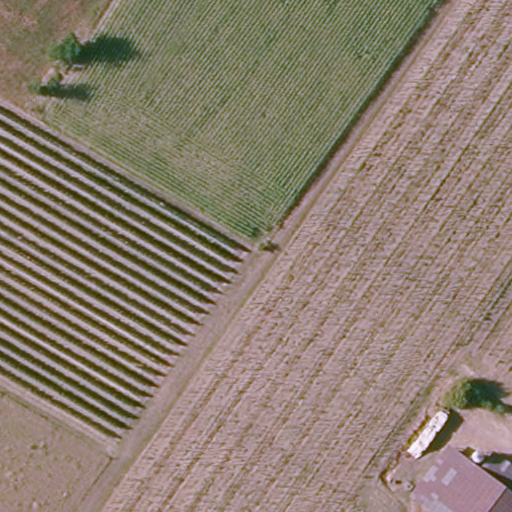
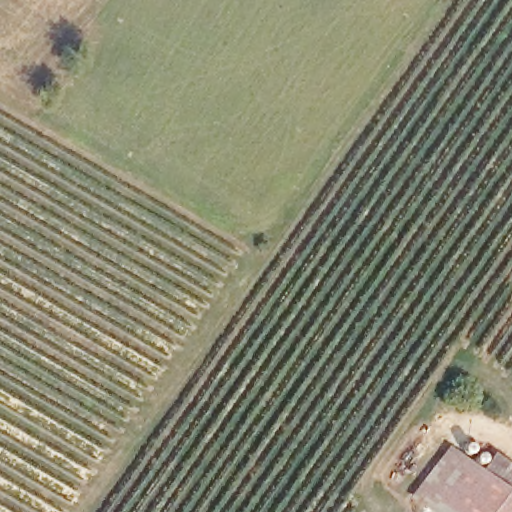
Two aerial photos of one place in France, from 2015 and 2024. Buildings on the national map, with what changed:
unchanged [(485,436),(512,455),(512,495),(466,462),(485,436)]
unchanged [(466,462),(512,495),(512,512),(435,512),(434,504),(466,462)]

